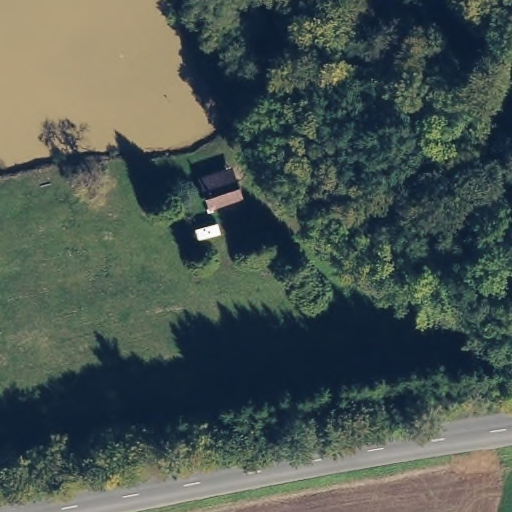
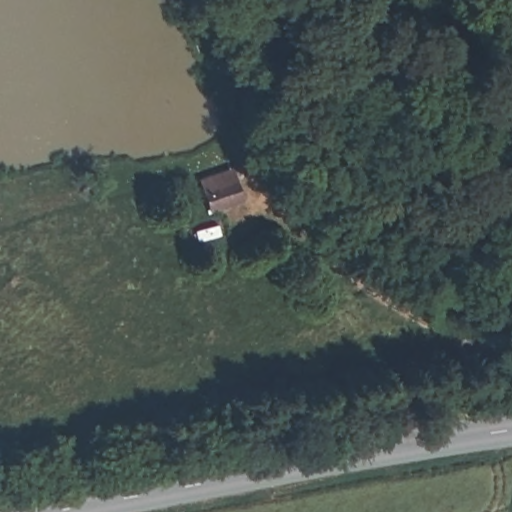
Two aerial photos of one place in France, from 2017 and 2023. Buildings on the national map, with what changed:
unchanged [(237,168),(248,200),(209,212),(201,179),(237,168)]

